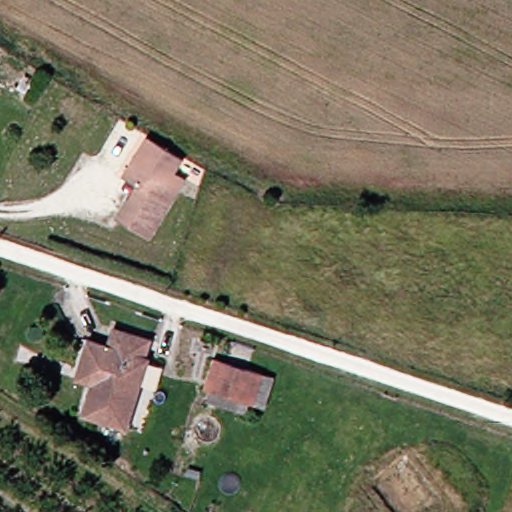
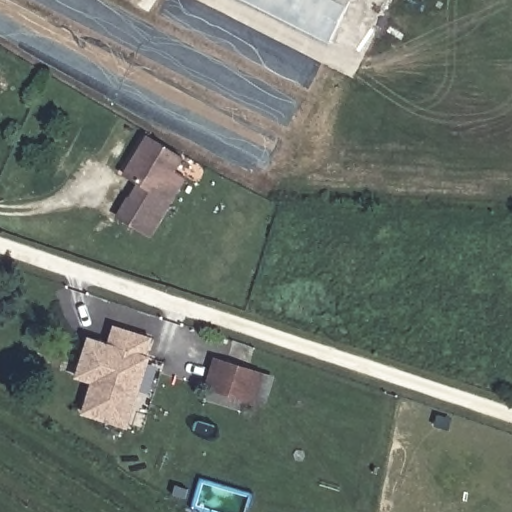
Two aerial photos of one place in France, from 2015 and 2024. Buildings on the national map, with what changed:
new [(329,44),(243,0),(350,0),(329,44)]
unchanged [(115,178),(137,141),(174,164),(157,190),(167,196),(142,236),(112,217),(121,201),(130,187),(115,178)]
unchanged [(69,367),(79,337),(100,343),(105,327),(141,339),(137,352),(142,356),(117,428),(74,414),(87,373),(69,367)]
unchanged [(265,378),(256,409),(206,392),(215,362),(265,378)]

